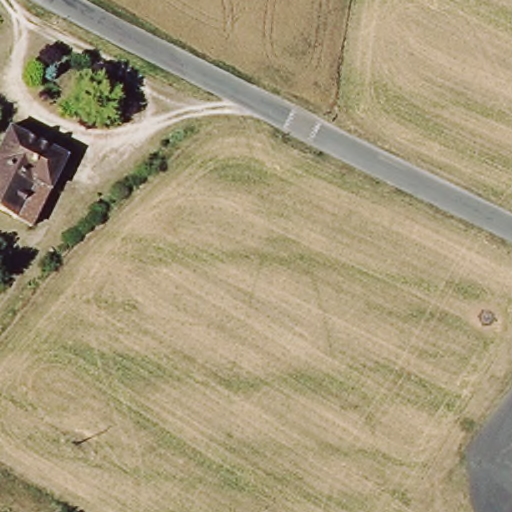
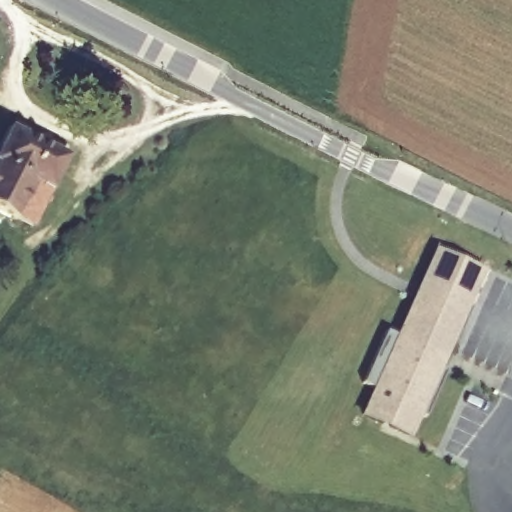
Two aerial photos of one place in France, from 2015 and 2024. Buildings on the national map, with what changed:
unchanged [(0,204),(0,147),(14,122),(74,155),(57,187),(38,224),(15,212),(0,204)]
new [(486,269),(443,366),(448,369),(427,416),(421,415),(411,437),(361,416),(374,386),(364,382),(387,330),(396,333),(434,247),(486,269)]

